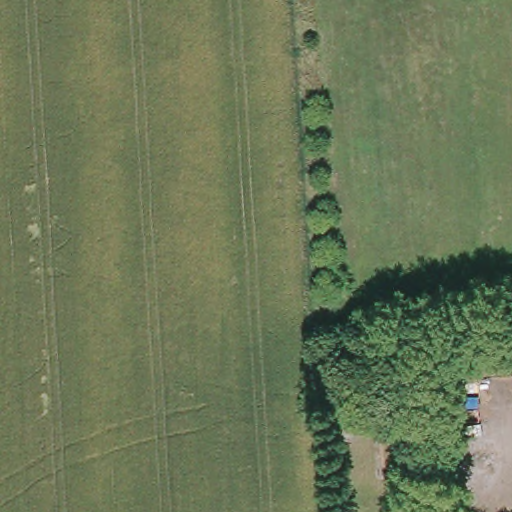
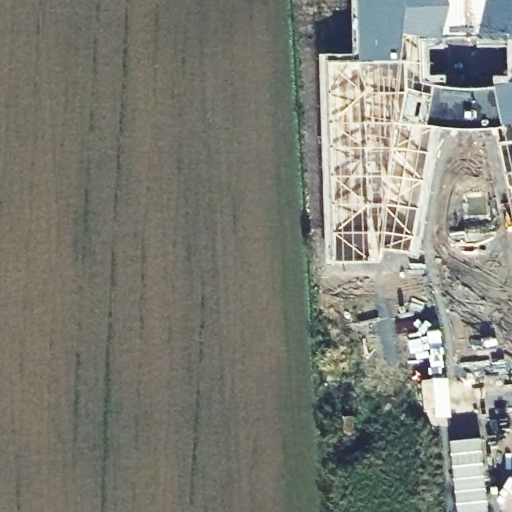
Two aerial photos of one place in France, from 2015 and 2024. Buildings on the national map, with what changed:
new [(497,129),(435,126),(414,256),(379,252),(379,264),(328,266),(320,51),(352,49),(351,0),(512,0),(512,204),(497,129)]

